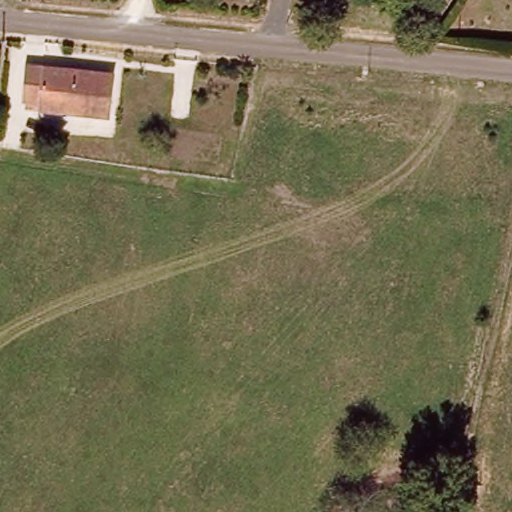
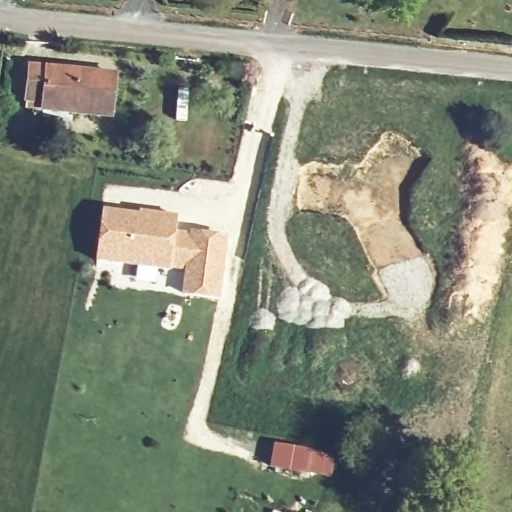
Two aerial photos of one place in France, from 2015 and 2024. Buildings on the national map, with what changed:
unchanged [(25,107),(29,71),(112,80),(108,123),(44,116),(44,110),(25,107)]
new [(174,231),(226,235),(220,301),(181,298),(183,272),(95,262),(100,208),(139,214),(139,210),(179,214),(174,231)]
new [(330,478),(270,468),(274,445),(335,455),(330,478)]

